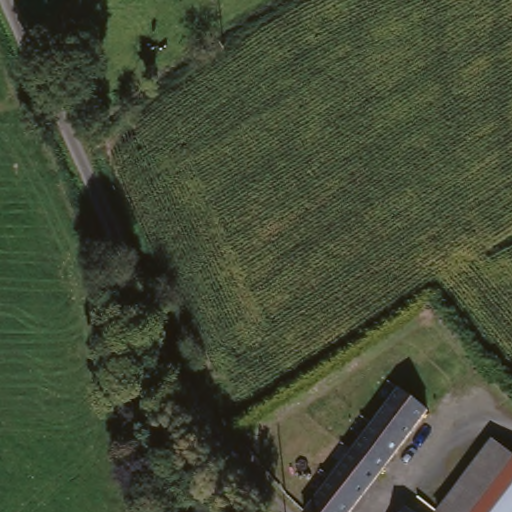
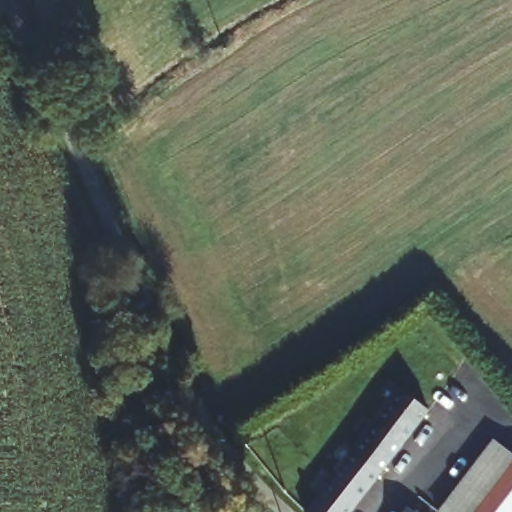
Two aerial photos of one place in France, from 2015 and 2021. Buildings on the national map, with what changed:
unchanged [(405,387),(431,407),(354,512),(312,512),(405,387)]
unchanged [(451,510),(503,441),(512,447),(512,512),(454,512),(451,510)]

